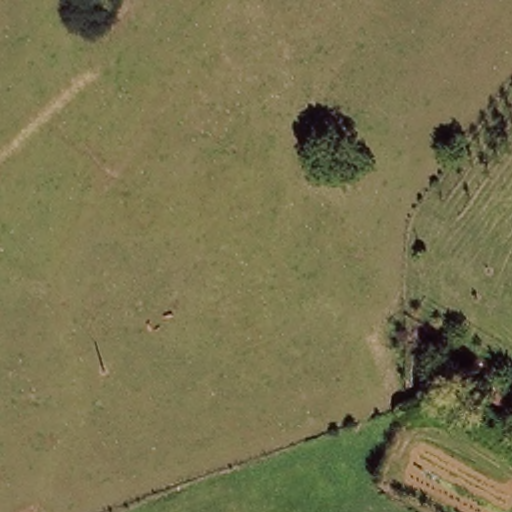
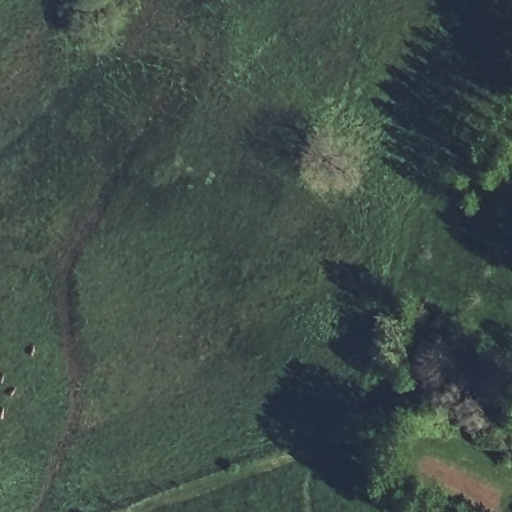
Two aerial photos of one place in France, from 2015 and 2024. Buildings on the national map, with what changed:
[]

